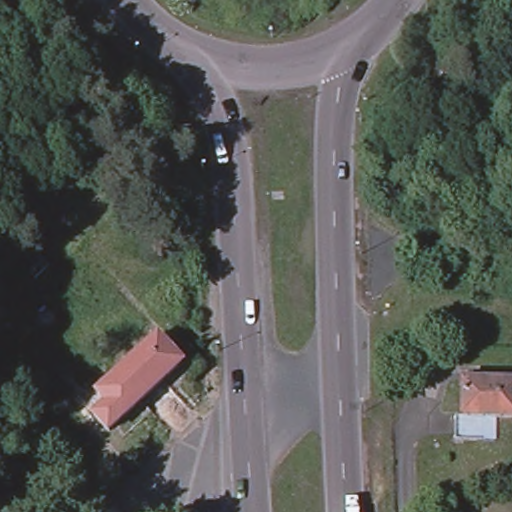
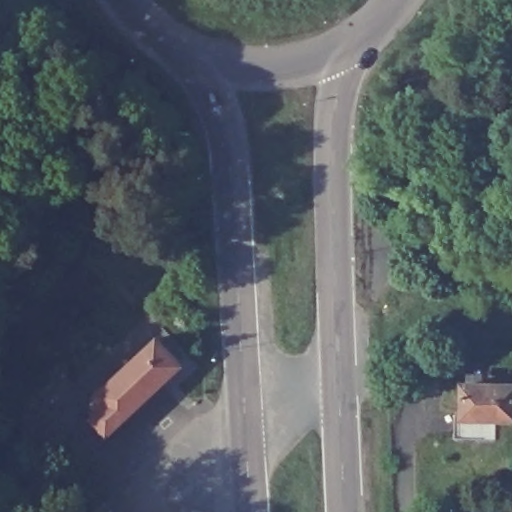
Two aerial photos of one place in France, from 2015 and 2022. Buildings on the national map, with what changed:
unchanged [(21,263),(28,256),(35,249),(49,264),(42,271),(35,278),(21,263)]
unchanged [(159,338),(182,363),(153,392),(130,367),(159,338)]
unchanged [(97,417),(103,411),(97,405),(103,399),(100,396),(130,367),(153,392),(124,420),(112,432),(97,417)]
unchanged [(456,433),(457,409),(465,409),(465,378),(512,378),(512,411),(497,411),(497,433),(456,433)]

